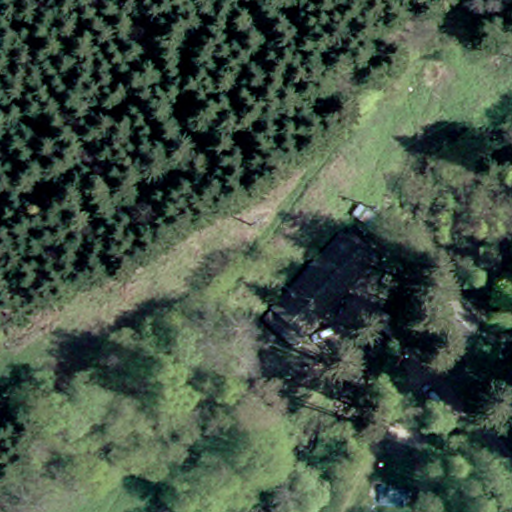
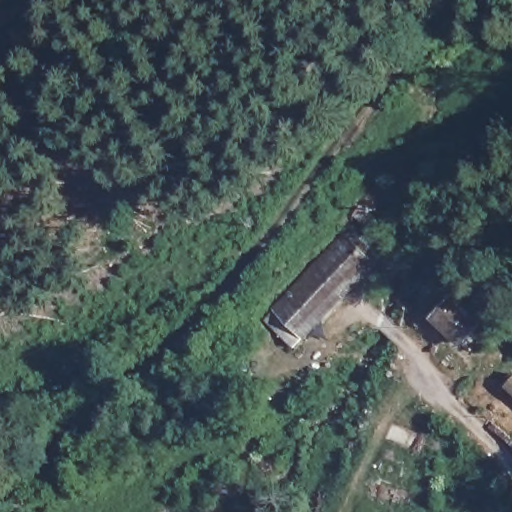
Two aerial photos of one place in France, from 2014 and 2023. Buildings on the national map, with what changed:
unchanged [(365,252),(286,339),(259,315),(342,222),(366,243),(365,252)]
unchanged [(467,333),(449,350),(425,322),(445,306),(467,333)]
unchanged [(512,420),(490,394),(502,383),(512,394),(512,420)]

